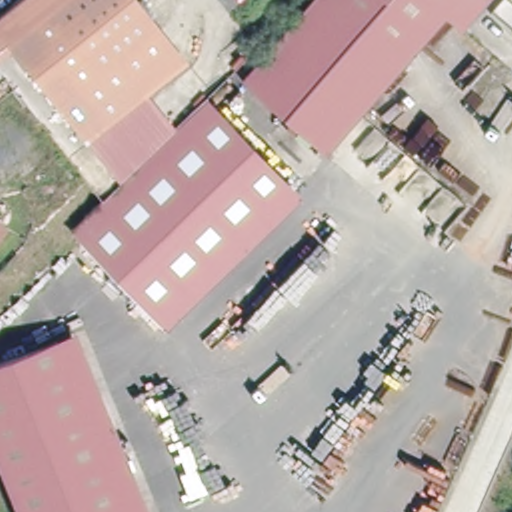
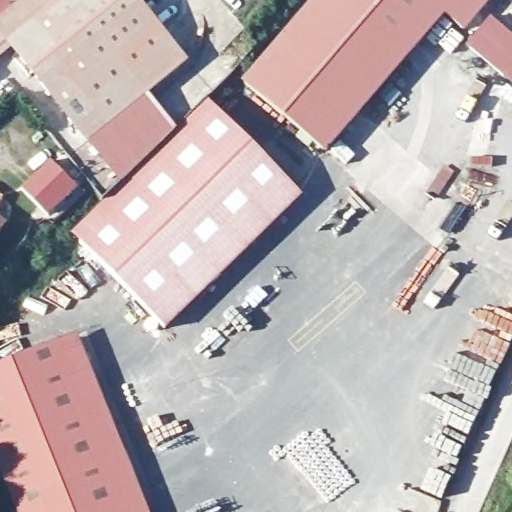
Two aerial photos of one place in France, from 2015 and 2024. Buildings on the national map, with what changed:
unchanged [(57,0),(13,37),(93,135),(147,90),(177,129),(208,97),(302,195),(166,327),(72,231),(122,180),(9,50),(0,56),(0,16),(19,0),(57,0)]
unchanged [(141,0),(188,56),(93,135),(13,37),(57,0),(141,0)]
unchanged [(441,12),(325,152),(245,85),(314,0),(482,0),(459,27),(441,12)]
new [(465,46),(489,17),(512,36),(512,86),(465,46)]
new [(50,162),(75,189),(47,215),(21,189),(50,162)]
unchanged [(0,227),(0,215),(5,220),(0,227)]
unchanged [(74,331),(146,512),(125,512),(55,339),(74,331)]
unchanged [(0,461),(0,362),(55,339),(125,512),(20,512),(0,461)]

